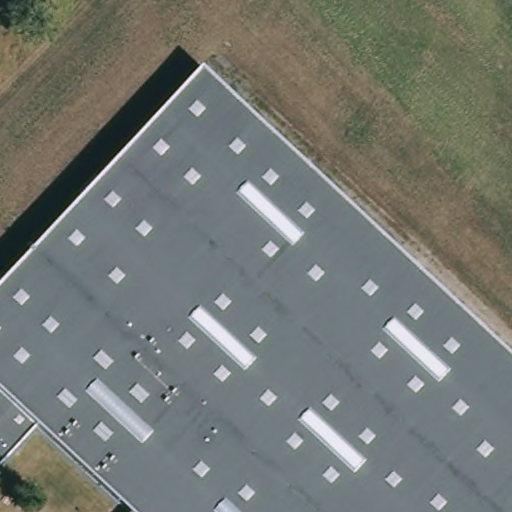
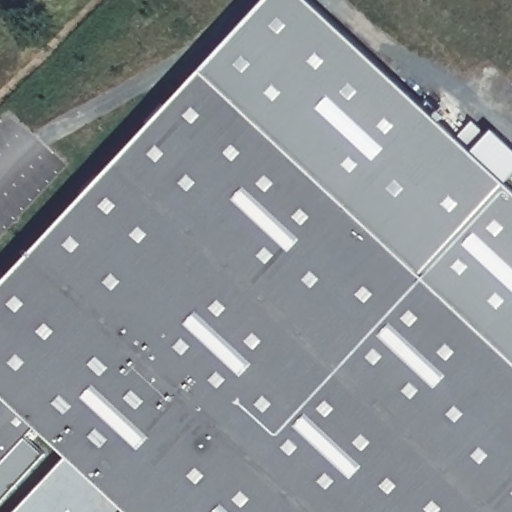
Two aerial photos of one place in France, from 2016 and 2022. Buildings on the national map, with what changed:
new [(266,0),(312,0),(512,184),(512,356),(202,68),(266,0)]
unchanged [(131,512),(35,424),(0,461),(0,285),(202,68),(512,356),(512,512),(131,512)]

